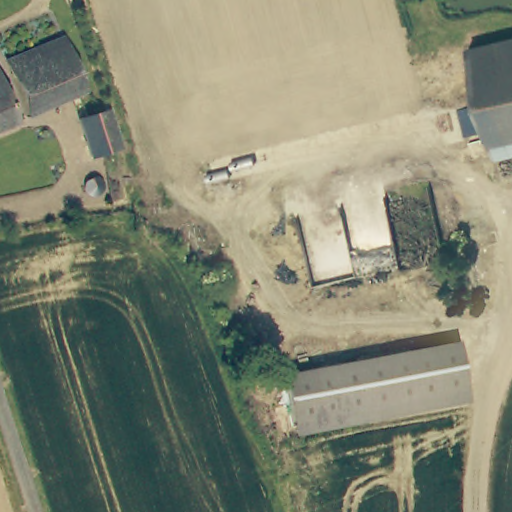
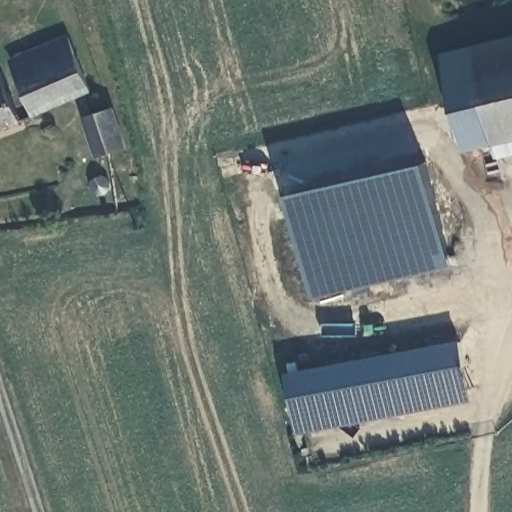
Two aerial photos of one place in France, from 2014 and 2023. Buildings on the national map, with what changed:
unchanged [(495,153),(490,134),(481,97),(455,103),(446,105),(436,55),(512,37),(512,149),(495,153)]
unchanged [(10,61),(69,40),(88,96),(30,117),(10,61)]
unchanged [(0,79),(16,123),(0,129),(0,79)]
unchanged [(464,141),(455,103),(481,97),(490,134),(464,141)]
unchanged [(79,120),(107,109),(122,147),(94,158),(79,120)]
new [(310,298),(291,195),(426,163),(447,268),(310,298)]
unchanged [(105,209),(97,210),(92,207),(90,200),(93,195),(99,191),(105,194),(108,199),(108,204),(105,209)]
unchanged [(293,423),(285,377),(458,345),(467,391),(293,423)]

